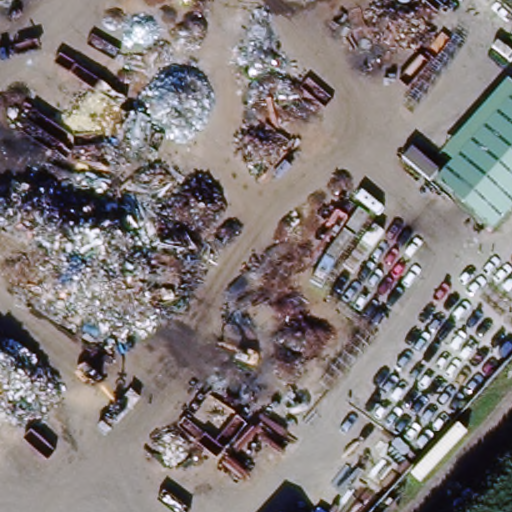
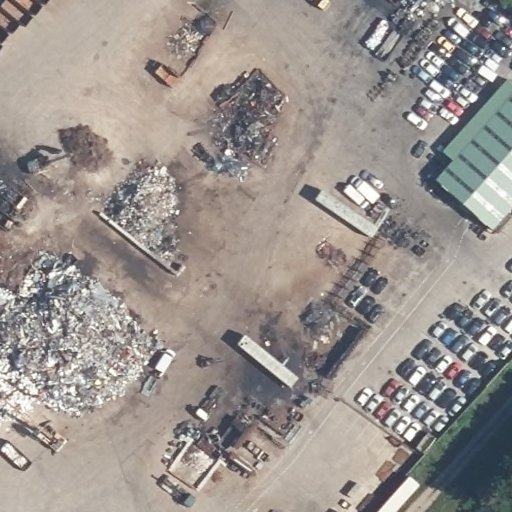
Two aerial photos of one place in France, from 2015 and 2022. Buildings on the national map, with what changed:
unchanged [(512,88),(512,206),(490,231),(437,184),(450,169),(436,157),(505,81),(512,88)]

